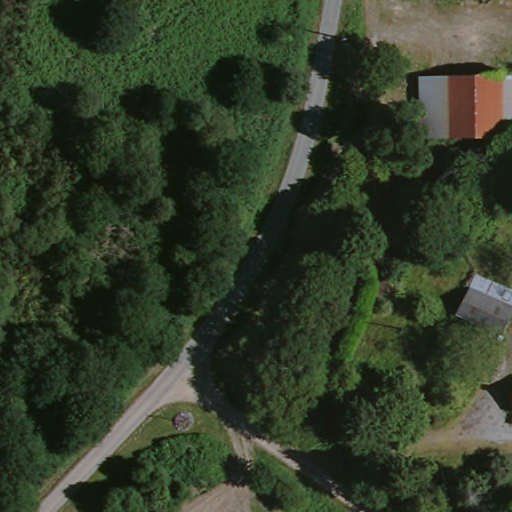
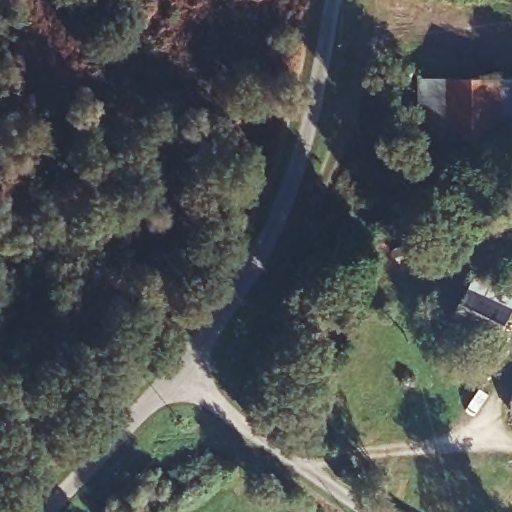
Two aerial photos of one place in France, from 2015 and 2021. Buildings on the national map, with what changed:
unchanged [(512,69),(512,128),(422,131),(420,74),(512,69)]
unchanged [(460,320),(469,287),(488,293),(512,300),(512,320),(509,333),(460,320)]
unchanged [(510,418),(512,408),(512,419),(510,418)]

